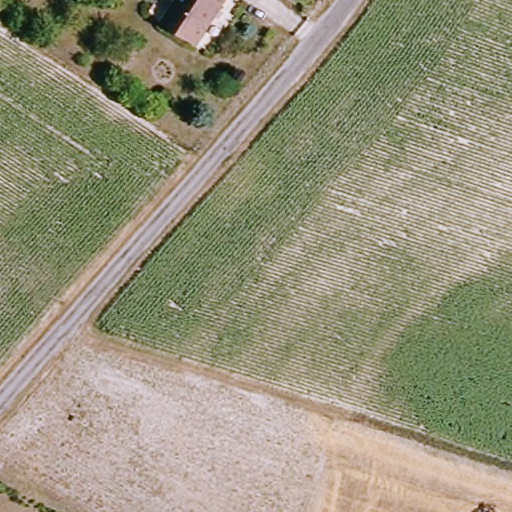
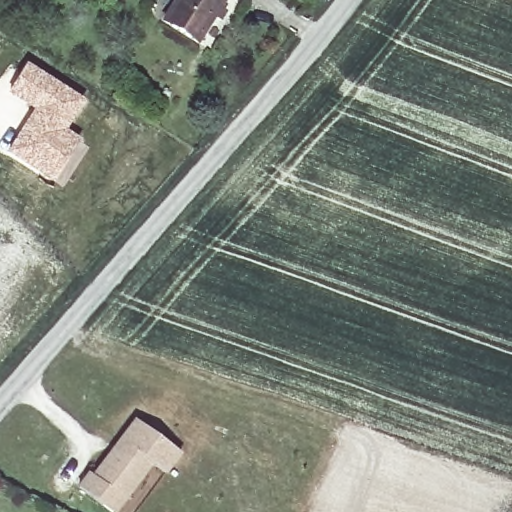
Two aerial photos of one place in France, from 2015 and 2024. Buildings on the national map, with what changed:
unchanged [(183,0),(231,0),(202,47),(167,26),(183,0)]
new [(32,109),(7,91),(26,62),(85,100),(66,130),(81,139),(55,183),(5,151),(32,109)]
new [(100,506),(78,488),(90,473),(93,476),(135,422),(179,456),(163,475),(151,465),(122,502),(114,512),(109,512),(100,506)]

